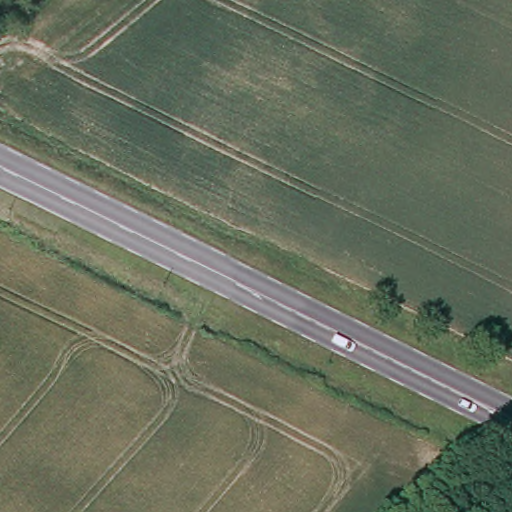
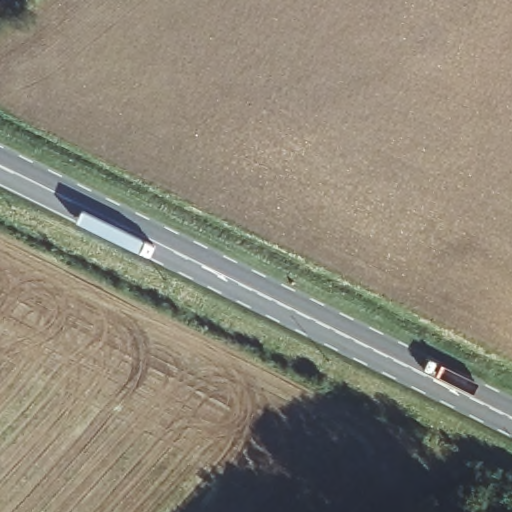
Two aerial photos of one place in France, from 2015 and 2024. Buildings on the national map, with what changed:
[]

